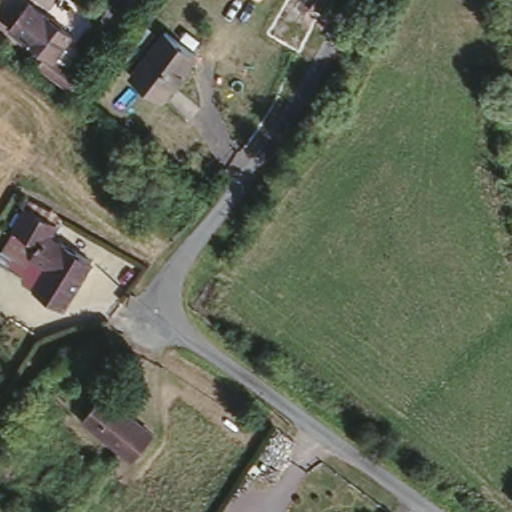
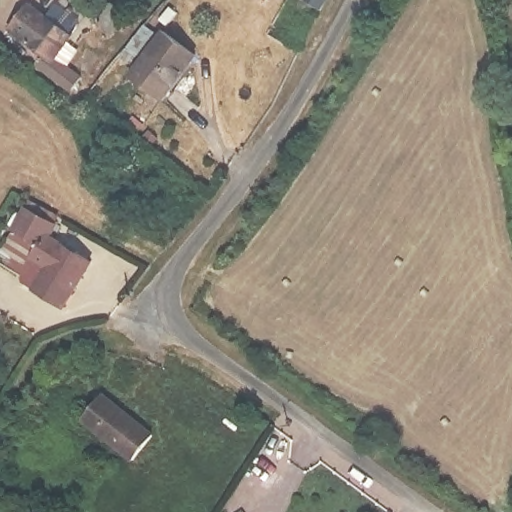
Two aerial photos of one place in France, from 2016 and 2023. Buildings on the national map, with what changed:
unchanged [(317,11),(296,0),(323,0),(317,11)]
unchanged [(74,37),(56,58),(80,79),(69,92),(39,66),(47,56),(16,31),(37,6),(74,37)]
unchanged [(185,55),(156,98),(127,78),(157,35),(185,55)]
unchanged [(58,294),(51,307),(31,294),(48,268),(34,260),(23,279),(0,264),(0,260),(16,233),(29,211),(59,229),(50,243),(60,249),(90,269),(69,301),(58,294)]
unchanged [(154,430),(139,456),(86,421),(100,396),(154,430)]

